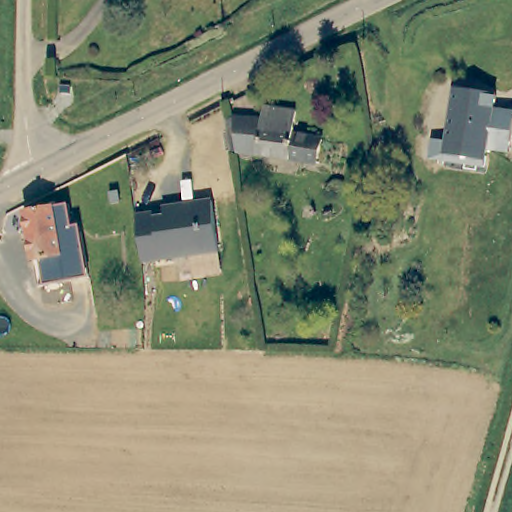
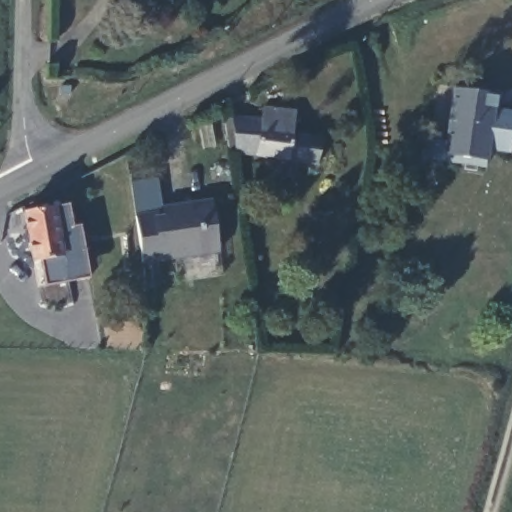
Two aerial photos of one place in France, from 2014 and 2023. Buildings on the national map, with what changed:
unchanged [(507,138),(502,171),(480,167),(479,171),(477,176),(473,179),(461,177),(459,175),(457,172),(457,168),(458,164),(439,161),(450,86),(492,93),(485,134),(507,138)]
unchanged [(325,140),(320,170),(308,169),(308,164),(242,155),(236,118),(267,123),(269,110),(300,115),(297,136),(325,140)]
unchanged [(215,252),(139,264),(137,253),(131,218),(150,215),(151,219),(160,218),(158,209),(208,201),(215,252)]
unchanged [(80,234),(86,269),(76,282),(41,287),(38,261),(30,262),(23,212),(68,205),(72,229),(80,234)]

